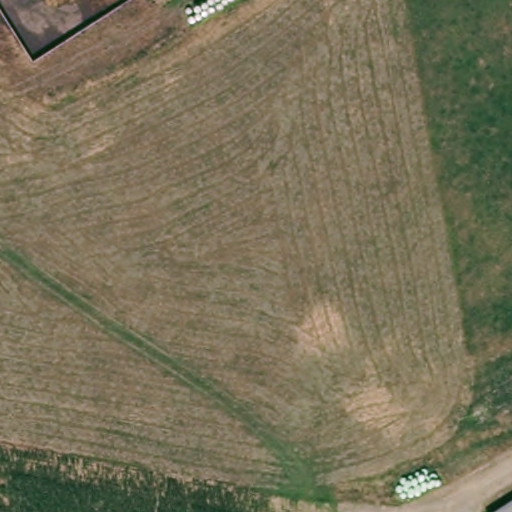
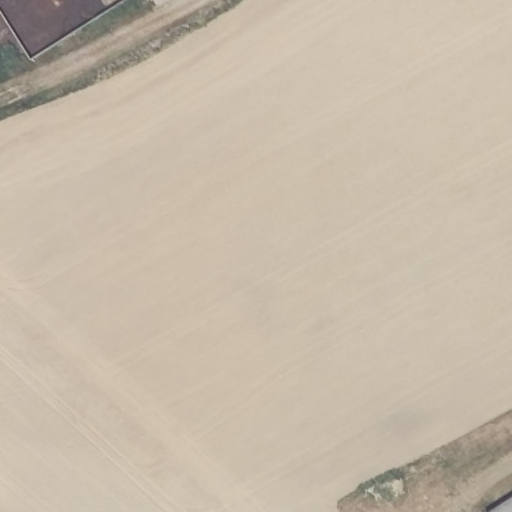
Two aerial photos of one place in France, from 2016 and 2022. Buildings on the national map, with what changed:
unchanged [(499,512),(506,507),(512,503),(512,512),(499,512)]

